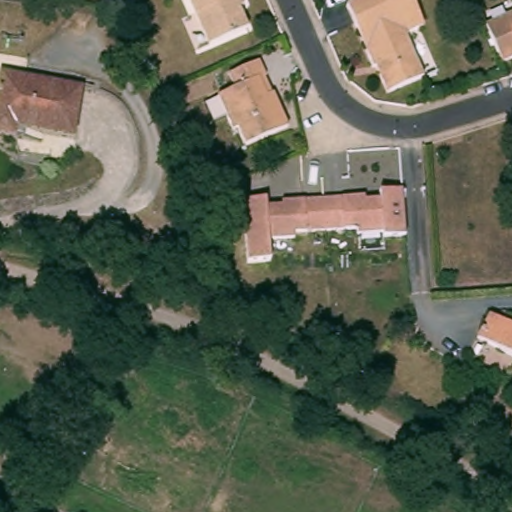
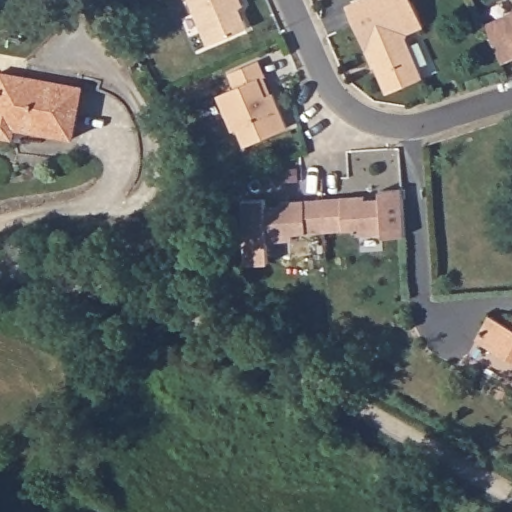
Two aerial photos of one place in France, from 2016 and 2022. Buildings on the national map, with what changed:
unchanged [(245,2),(239,5),(249,26),(209,43),(190,0),(245,0),(245,2)]
unchanged [(348,4),(357,0),(415,0),(426,23),(412,29),(409,36),(427,74),(395,89),(383,62),(376,66),(368,46),(359,29),(348,4)]
unchanged [(504,60),(502,53),(488,21),(512,10),(512,57),(504,60)]
unchanged [(292,129),(249,150),(240,132),(235,134),(219,99),(239,90),(232,77),(262,64),(268,78),(267,78),(274,96),(276,95),(292,129)]
unchanged [(76,143),(44,134),(40,145),(0,135),(0,68),(90,91),(76,143)]
unchanged [(369,203),(370,207),(386,206),(385,197),(408,196),(411,242),(389,243),(388,239),(363,241),(363,235),(331,238),(329,206),(364,203),(369,203)]
unchanged [(299,240),(300,246),(275,247),(277,268),(254,270),(249,207),(272,206),(273,214),(288,213),(288,209),(294,208),(329,206),(331,238),(299,240)]
unchanged [(479,337),(492,314),(512,325),(512,355),(479,337)]

